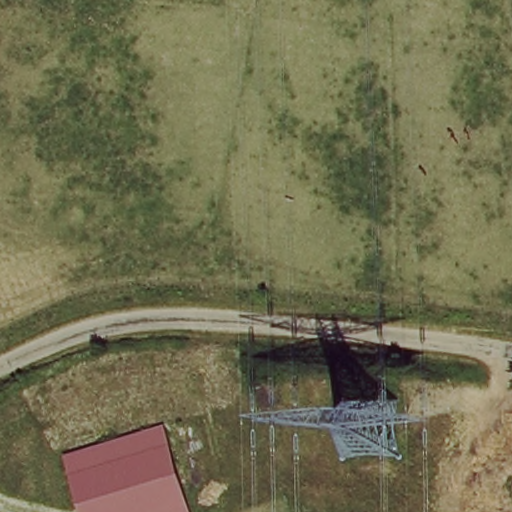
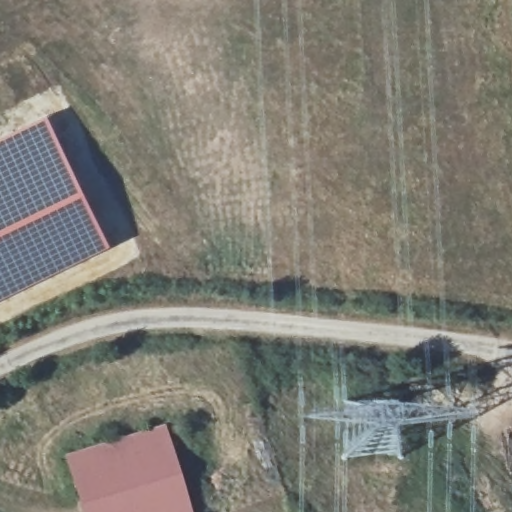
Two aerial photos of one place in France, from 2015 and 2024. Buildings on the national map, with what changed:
new [(46,114),(88,195),(113,247),(0,300),(0,137),(13,131),(46,114)]
unchanged [(164,425),(190,512),(78,512),(61,456),(164,425)]

